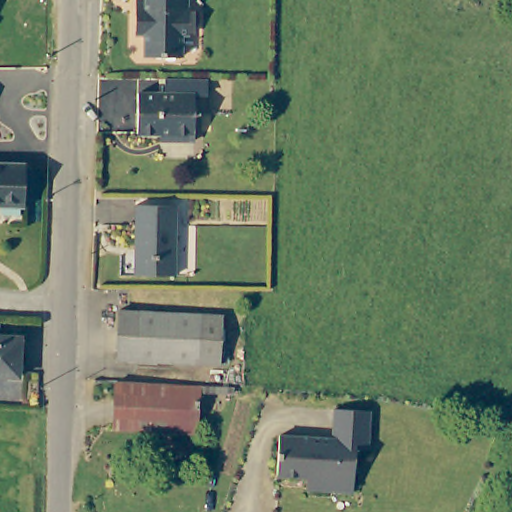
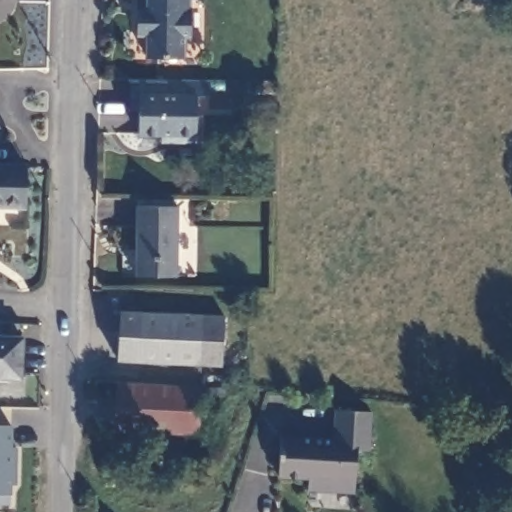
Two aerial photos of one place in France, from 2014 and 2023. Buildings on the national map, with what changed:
unchanged [(1,36),(0,35),(0,0),(6,0),(6,9),(6,19),(2,19),(1,36)]
unchanged [(183,35),(178,34),(176,56),(139,53),(140,32),(131,30),(133,9),(134,0),(187,0),(183,35)]
unchanged [(190,146),(166,144),(166,137),(133,134),(134,94),(193,97),(190,146)]
unchanged [(23,205),(0,204),(0,161),(24,162),(23,205)]
unchanged [(178,278),(136,276),(137,207),(179,207),(178,278)]
unchanged [(116,309),(221,315),(219,365),(114,359),(116,309)]
unchanged [(0,379),(0,329),(6,330),(6,341),(22,342),(20,381),(0,379)]
unchanged [(196,389),(191,437),(176,435),(107,429),(113,379),(188,388),(196,389)]
unchanged [(333,437),(335,414),(370,416),(367,454),(355,453),(353,490),(306,487),(307,474),(277,472),(280,433),(311,436),(333,437)]
new [(11,448),(17,448),(16,484),(11,484),(10,506),(0,506),(0,424),(11,424),(11,448)]

